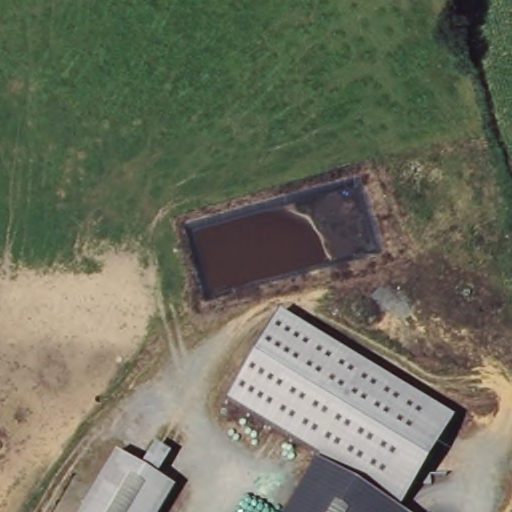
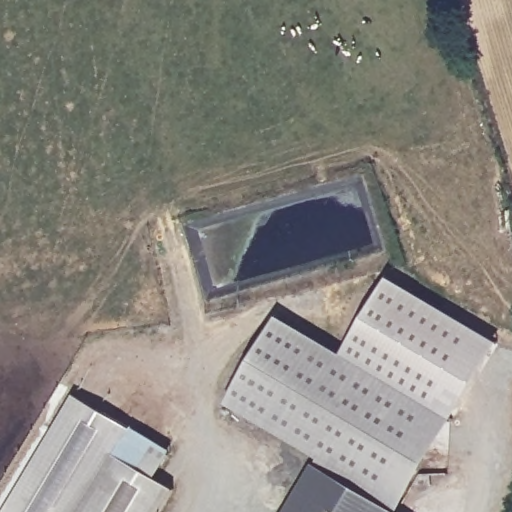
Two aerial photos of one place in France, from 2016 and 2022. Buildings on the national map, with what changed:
new [(500,343),(477,381),(454,421),(343,354),(390,278),(500,343)]
unchanged [(399,512),(287,512),(318,460),(226,402),(278,316),(454,421),(399,512)]
new [(155,442),(139,469),(115,452),(80,512),(5,512),(75,396),(131,430),(155,442)]
unchanged [(139,469),(155,442),(172,452),(157,479),(176,489),(162,512),(80,512),(115,452),(139,469)]

